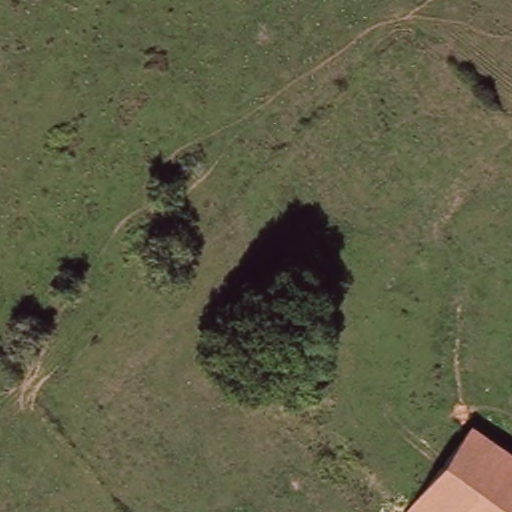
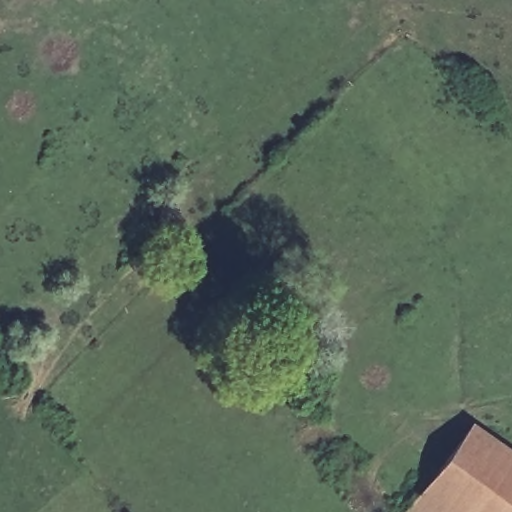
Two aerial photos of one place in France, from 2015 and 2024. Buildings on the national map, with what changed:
unchanged [(474,420),(512,449),(512,512),(419,512),(413,508),(474,420)]

